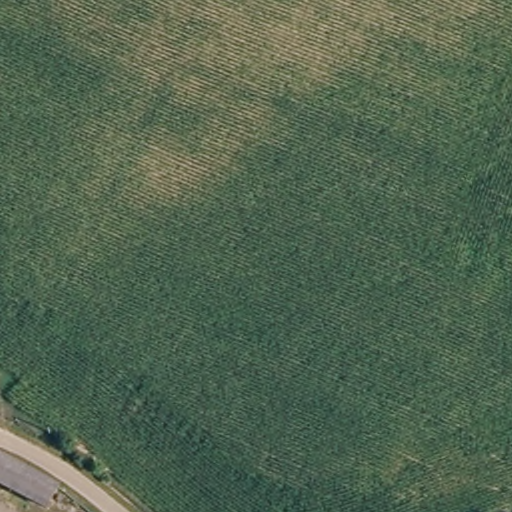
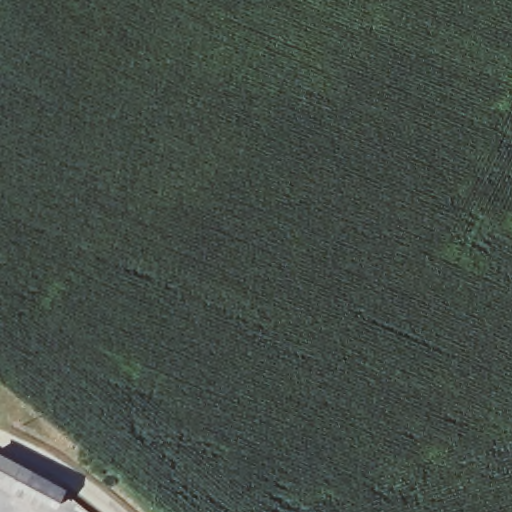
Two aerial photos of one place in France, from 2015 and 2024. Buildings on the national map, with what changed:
unchanged [(0,485),(0,459),(58,490),(49,510),(0,485)]

